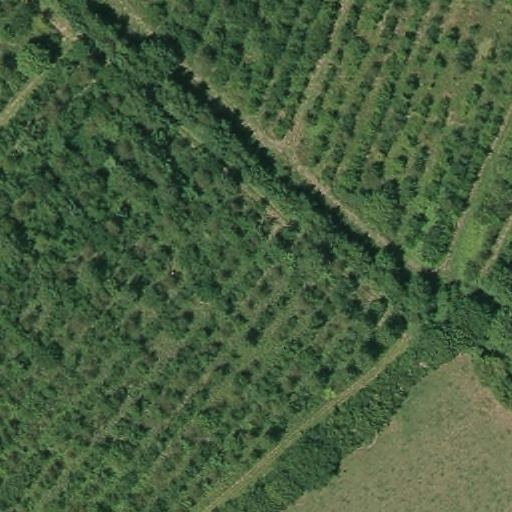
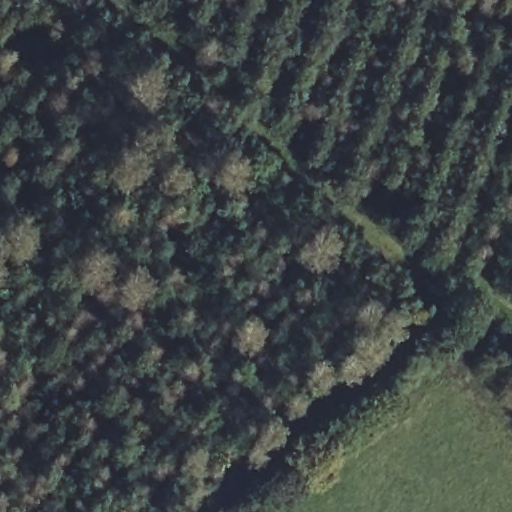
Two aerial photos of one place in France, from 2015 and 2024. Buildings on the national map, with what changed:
[]

